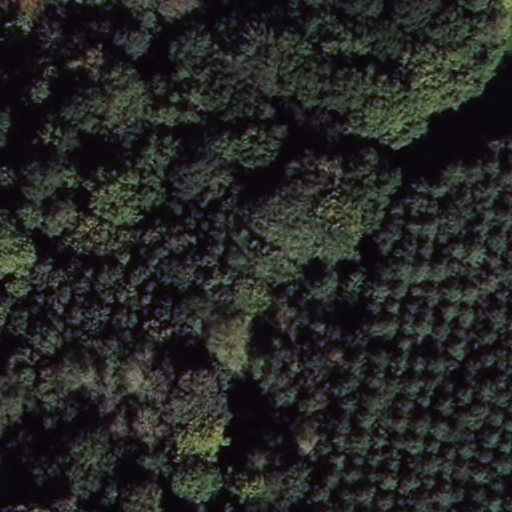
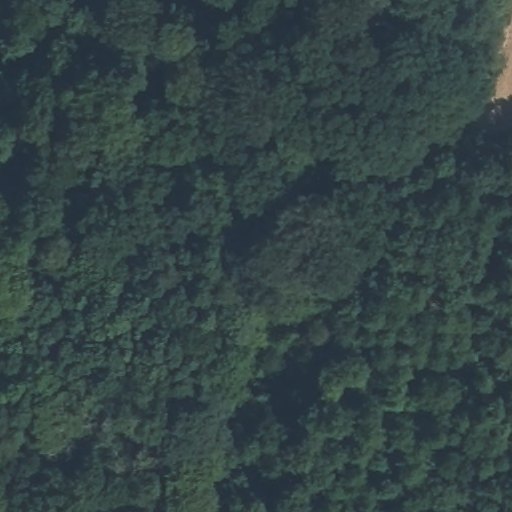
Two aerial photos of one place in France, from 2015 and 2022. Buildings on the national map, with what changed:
[]

